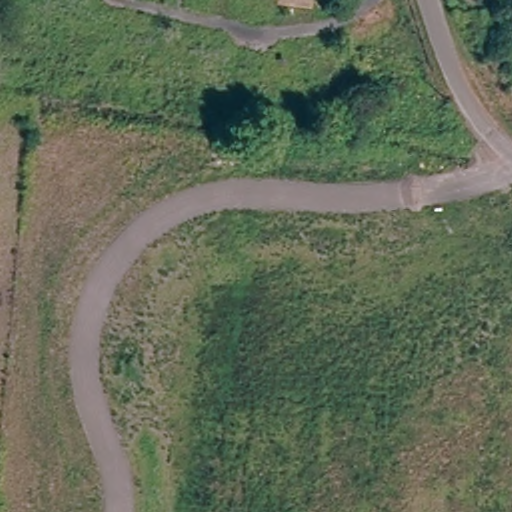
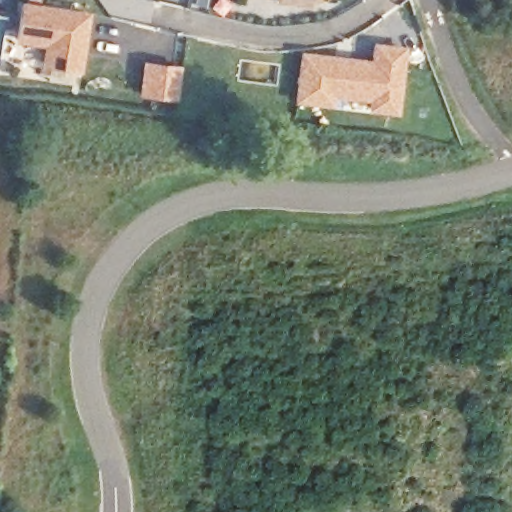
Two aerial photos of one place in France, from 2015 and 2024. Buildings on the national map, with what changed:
unchanged [(292,0),(318,0),(317,9),(292,6),(292,0)]
new [(39,67),(42,46),(16,42),(21,1),(90,11),(82,73),(39,67)]
new [(298,49),(367,57),(370,40),(403,45),(396,115),(345,110),(291,101),(298,49)]
new [(140,59),(179,64),(175,100),(135,95),(140,59)]

